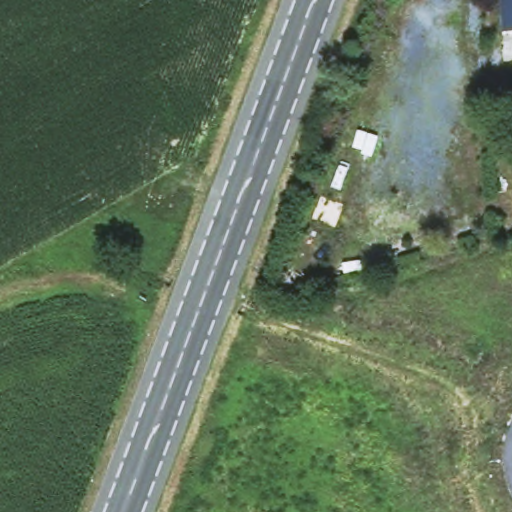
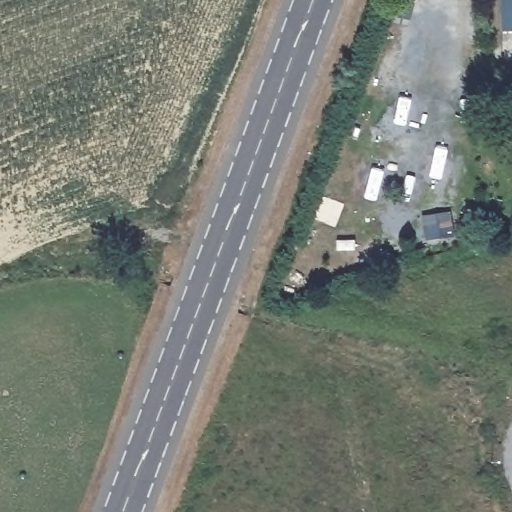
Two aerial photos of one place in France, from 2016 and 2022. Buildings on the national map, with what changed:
unchanged [(500,32),(500,0),(512,0),(512,32),(500,32)]

